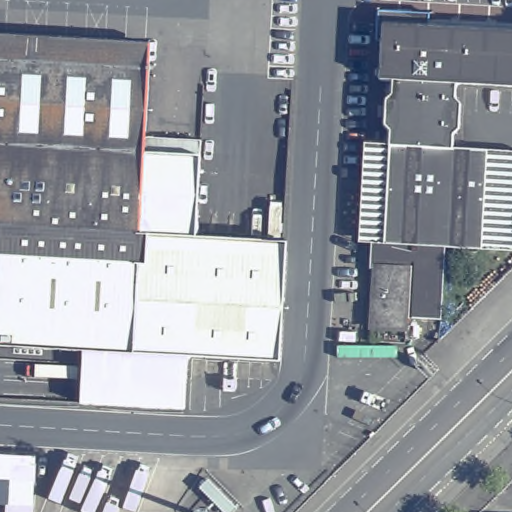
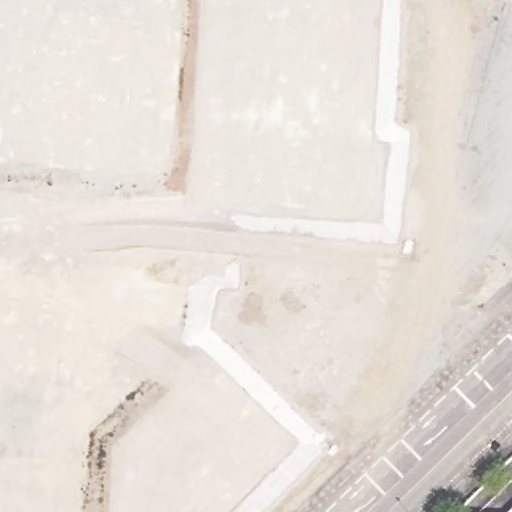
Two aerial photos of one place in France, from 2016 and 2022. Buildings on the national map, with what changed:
demolished [(469,83),(467,105),(475,111),(472,133),(465,136),(464,150),(512,156),(512,254),(446,247),(442,298),(407,295),(406,308),(376,306),(381,248),(375,247),(385,147),(393,145),(395,134),(386,129),(388,103),(397,99),(399,81),(387,79),(390,28),(512,36),(512,86),(469,83)]
demolished [(138,239),(155,240),(291,247),(282,371),(196,366),(193,422),(88,416),(91,360),(2,355),(9,268),(0,268),(0,151),(143,159),(138,239)]
demolished [(35,512),(6,512),(6,505),(0,505),(0,453),(36,455),(35,512)]

